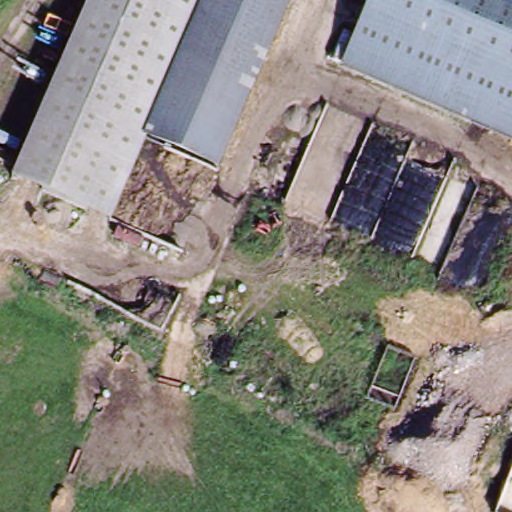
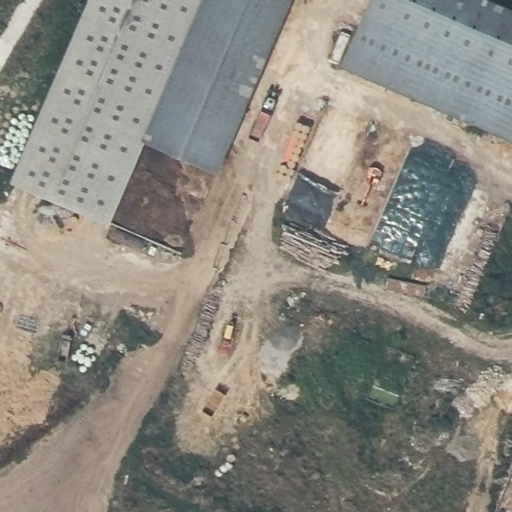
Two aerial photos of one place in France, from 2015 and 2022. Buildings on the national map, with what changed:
unchanged [(113,229),(14,184),(93,0),(201,0),(138,145),(146,148),(113,229)]
unchanged [(220,177),(146,148),(138,145),(201,0),(293,0),(220,177)]
unchanged [(433,10),(396,92),(341,67),(372,0),(437,0),(433,10)]
unchanged [(512,45),(433,10),(437,0),(485,0),(512,12),(512,45)]
unchanged [(512,144),(396,92),(433,10),(512,45),(512,144)]

